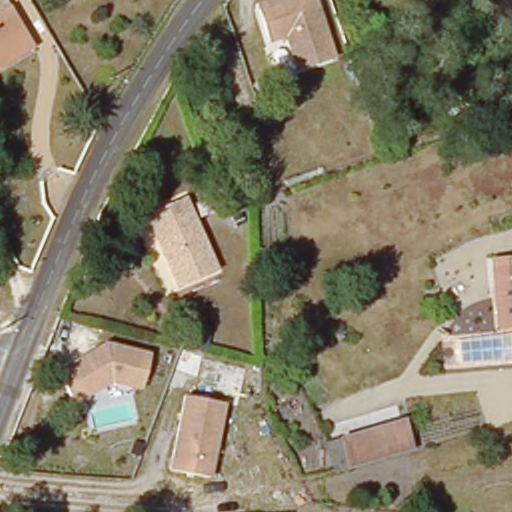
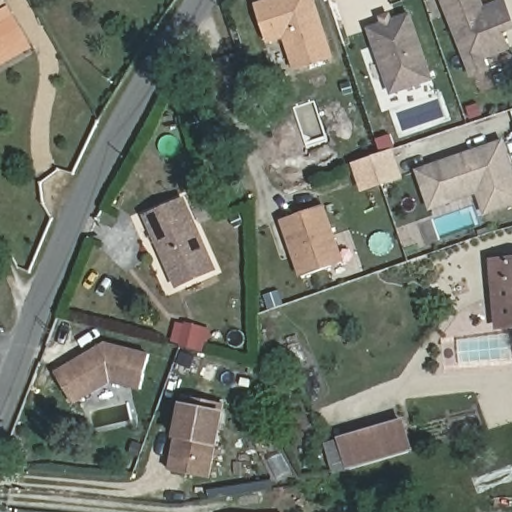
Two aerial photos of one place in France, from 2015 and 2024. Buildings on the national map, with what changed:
unchanged [(285,35),(269,41),(258,10),(256,4),(268,0),(313,0),(333,54),(297,68),(285,35)]
new [(512,31),(506,33),(511,49),(487,59),(491,69),(472,76),(442,0),(484,0),(485,5),(499,0),(506,0),(512,15),(512,31)]
unchanged [(5,3),(31,53),(0,71),(0,6),(5,3)]
new [(411,11),(435,80),(390,95),(367,27),(411,11)]
new [(512,167),(512,203),(486,213),(478,191),(445,203),(431,209),(417,170),(431,165),(502,139),(512,167)]
new [(392,150),(400,174),(381,180),(373,158),(392,150)]
unchanged [(148,218),(185,200),(219,274),(181,290),(148,218)]
new [(323,204),(343,261),(302,275),(282,219),(323,204)]
unchanged [(512,270),(512,319),(504,271),(512,270)]
unchanged [(107,340),(153,353),(143,393),(114,384),(78,407),(55,373),(107,340)]
unchanged [(228,404),(212,481),(169,472),(184,395),(228,404)]
unchanged [(349,473),(340,442),(401,424),(410,454),(349,473)]

